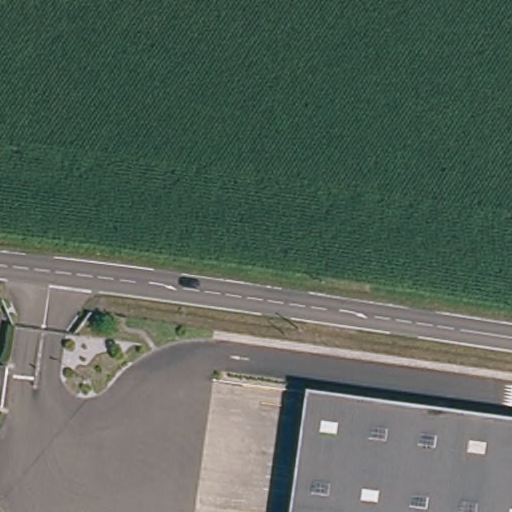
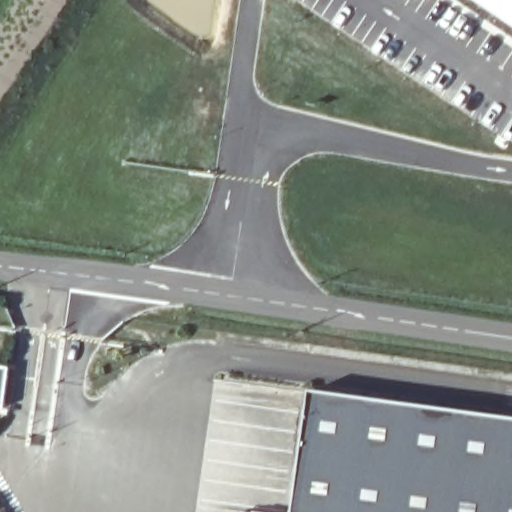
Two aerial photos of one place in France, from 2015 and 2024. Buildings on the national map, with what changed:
new [(470,0),(512,0),(512,28),(470,0)]
unchanged [(0,369),(8,370),(5,408),(0,407),(0,369)]
unchanged [(298,512),(314,390),(512,417),(512,512),(298,512)]

